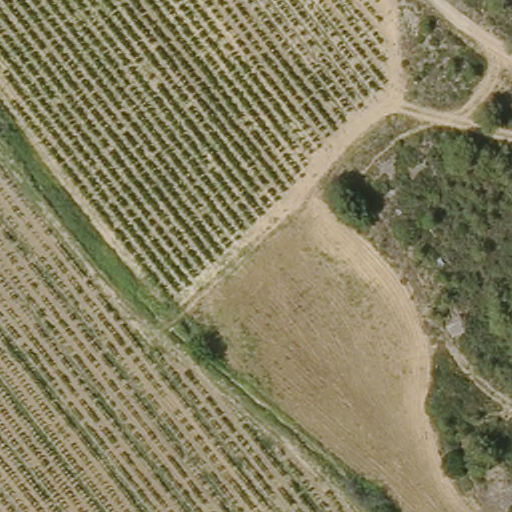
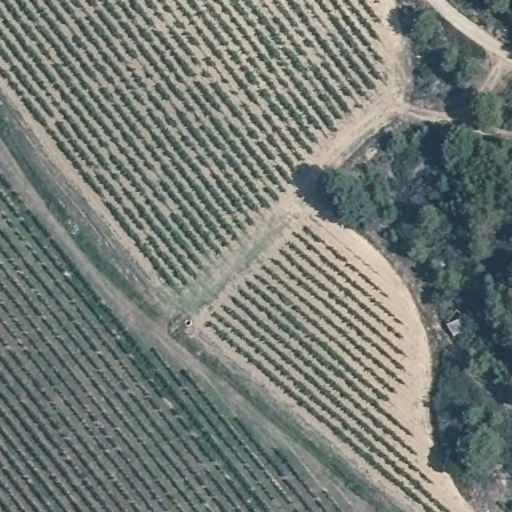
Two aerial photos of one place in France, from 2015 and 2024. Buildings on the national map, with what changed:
unchanged [(447,327),(466,318),(472,329),(454,338),(447,327)]

